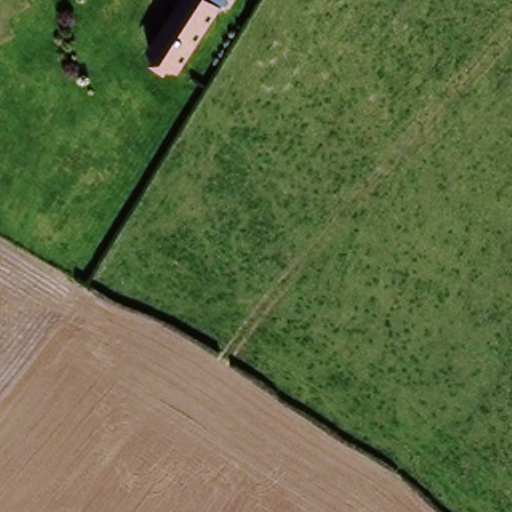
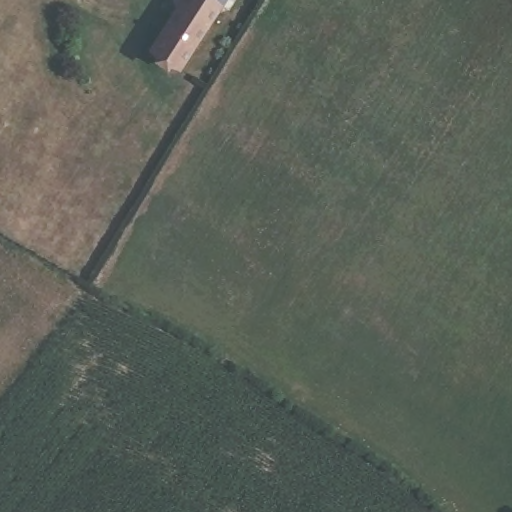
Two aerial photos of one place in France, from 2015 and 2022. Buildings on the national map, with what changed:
unchanged [(228,0),(186,68),(157,50),(188,0),(228,0)]

